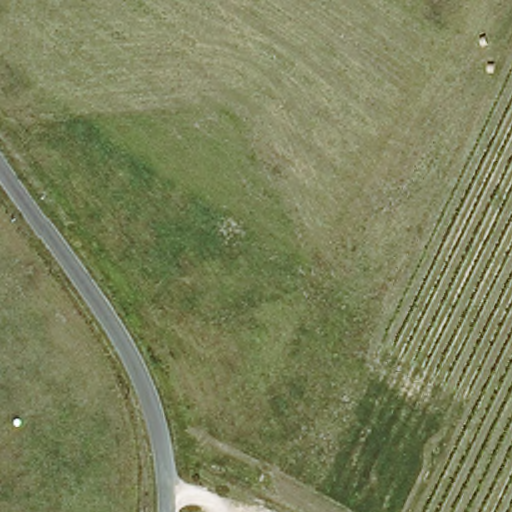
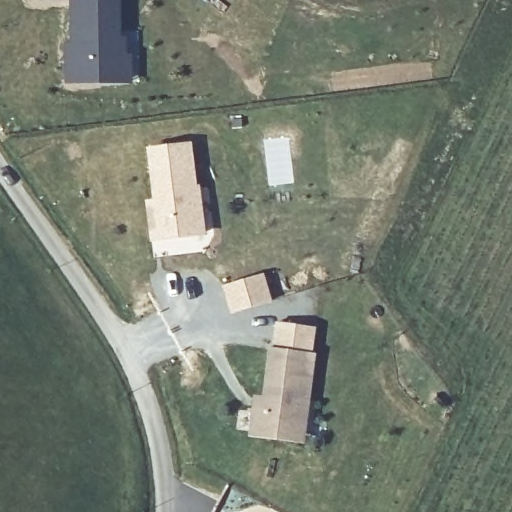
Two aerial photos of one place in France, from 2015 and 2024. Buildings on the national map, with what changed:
new [(120,0),(121,36),(128,36),(132,84),(63,85),(63,52),(67,0),(120,0)]
new [(144,202),(152,201),(145,147),(190,141),(195,187),(198,187),(205,235),(149,241),(144,202)]
new [(221,287),(264,274),(272,302),(230,315),(221,287)]
new [(252,395),(261,396),(267,347),(315,353),(304,442),(246,436),(252,395)]

